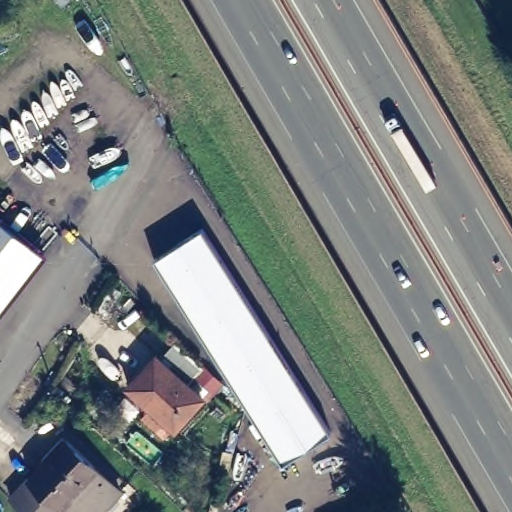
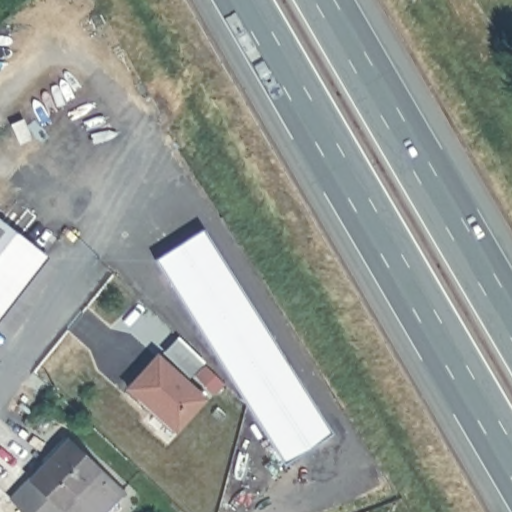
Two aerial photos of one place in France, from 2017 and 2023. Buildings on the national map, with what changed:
unchanged [(0,327),(0,214),(55,257),(0,327)]
unchanged [(338,432),(290,463),(253,407),(247,398),(160,262),(208,231),(276,337),(291,360),(338,432)]
unchanged [(152,419),(162,408),(139,388),(167,358),(212,400),(185,430),(183,428),(173,440),(152,419)]
unchanged [(70,443),(124,496),(108,512),(66,512),(34,482),(70,443)]

